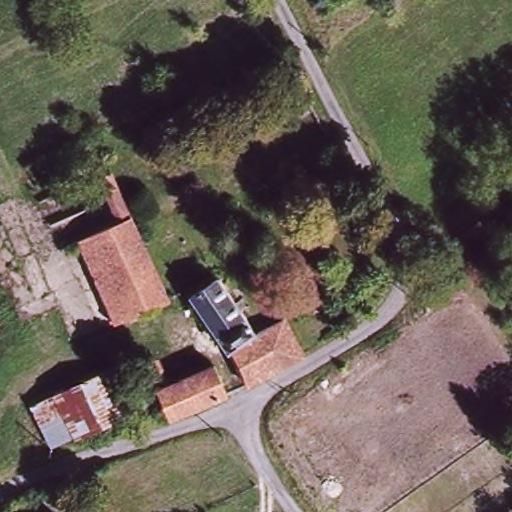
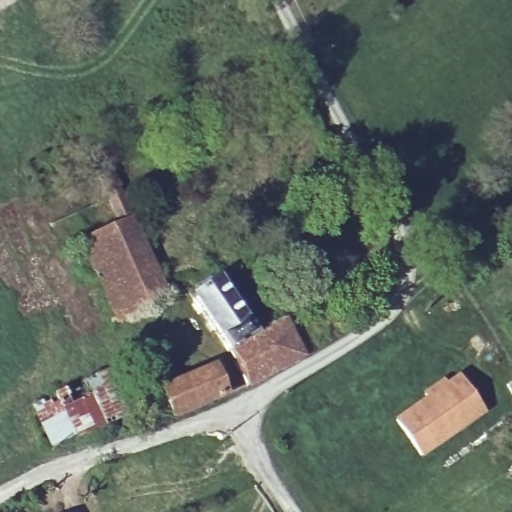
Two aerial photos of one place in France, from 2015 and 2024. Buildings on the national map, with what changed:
demolished [(335,0),(337,0),(336,1),(335,0)]
unchanged [(174,299),(108,329),(73,249),(106,235),(101,224),(123,214),(108,180),(119,175),(174,299)]
unchanged [(219,278),(258,336),(288,318),(308,353),(250,386),(193,294),(219,278)]
unchanged [(157,393),(147,368),(160,362),(171,387),(215,371),(231,398),(172,422),(171,418),(160,392),(157,393)]
new [(425,397),(422,393),(443,377),(446,382),(459,374),(485,412),(421,459),(393,420),(425,397)]
unchanged [(38,412),(58,403),(113,378),(131,422),(77,448),(75,444),(55,452),(38,412)]

